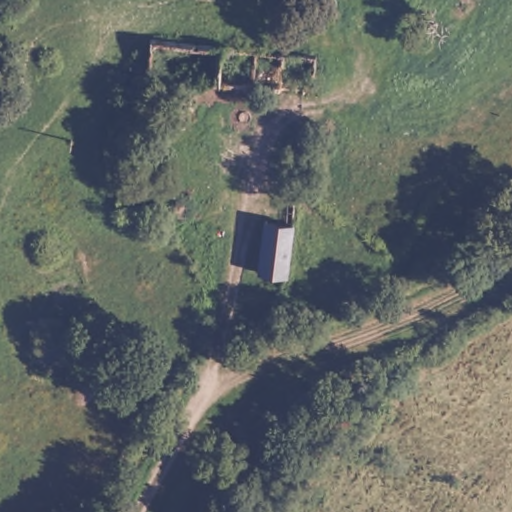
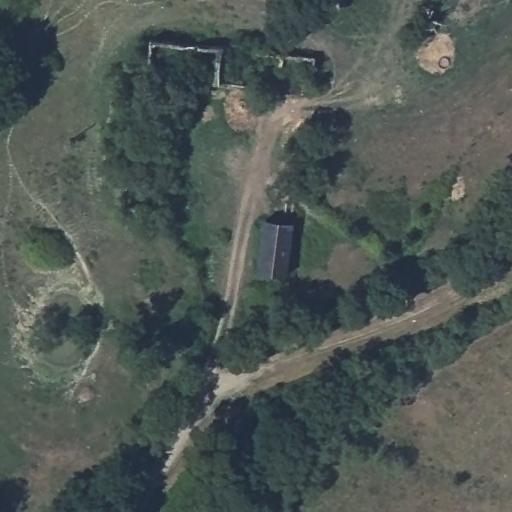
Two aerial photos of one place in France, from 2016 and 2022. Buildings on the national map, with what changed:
unchanged [(155,208),(122,203),(126,175),(158,179),(155,208)]
unchanged [(288,271),(258,268),(265,218),(295,222),(288,271)]

